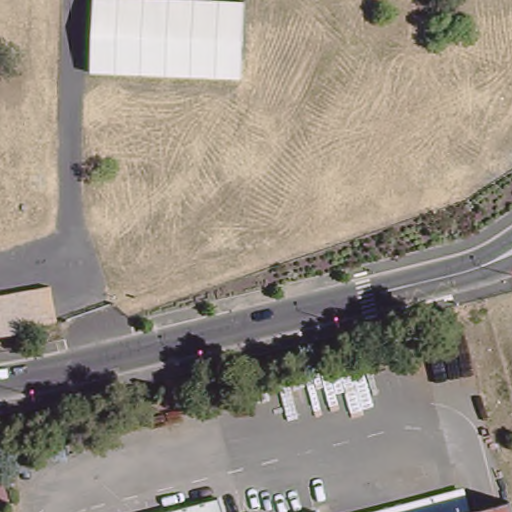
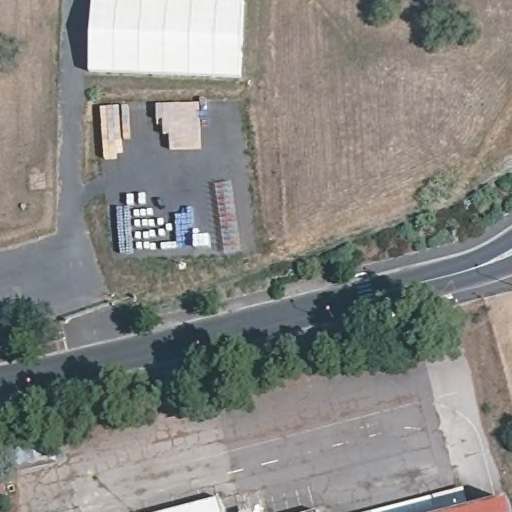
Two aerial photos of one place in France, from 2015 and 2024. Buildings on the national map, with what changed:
unchanged [(241,80),(91,75),(94,0),(199,0),(244,1),(241,80)]
unchanged [(222,512),(194,512),(221,505),(222,512)]
unchanged [(484,512),(511,505),(512,509),(512,512),(484,512)]

